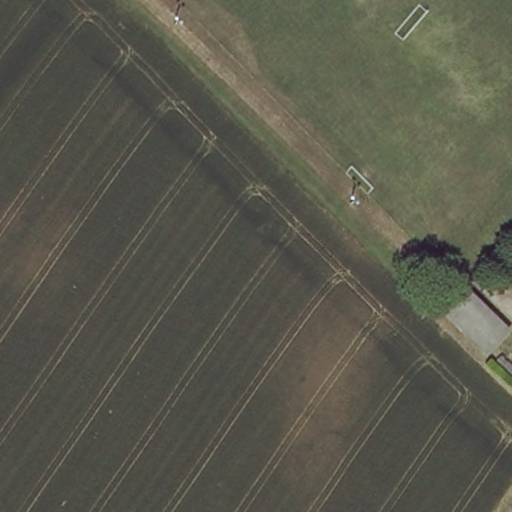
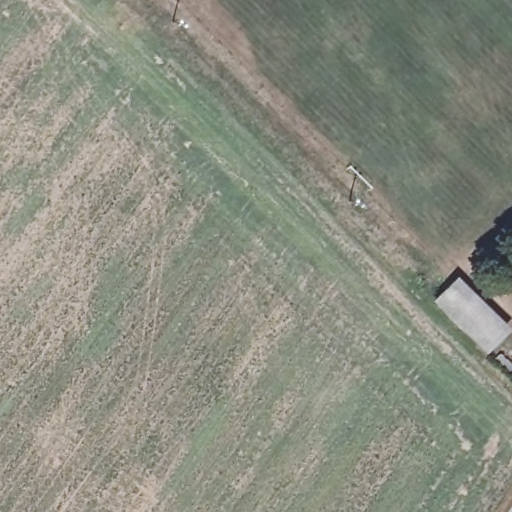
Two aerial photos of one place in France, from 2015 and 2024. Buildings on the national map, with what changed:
unchanged [(446,280),(499,329),(481,349),(428,300),(446,280)]

